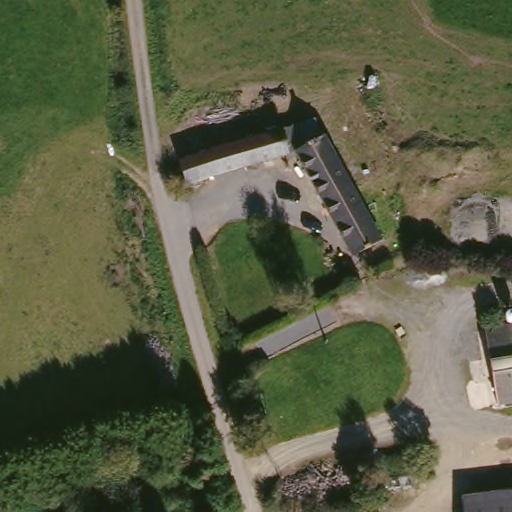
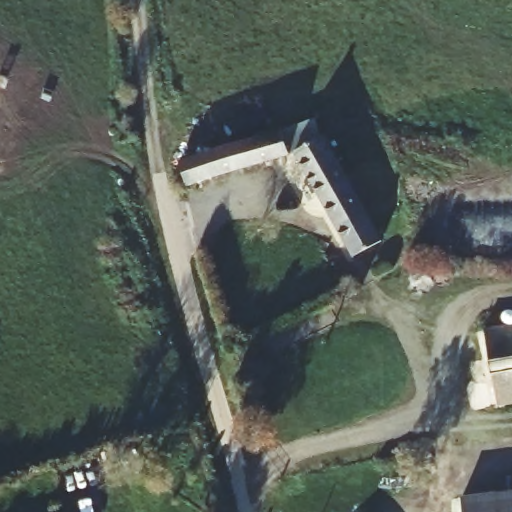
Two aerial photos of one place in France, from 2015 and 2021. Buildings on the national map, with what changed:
unchanged [(325,128),(292,149),(287,155),(280,130),(278,125),(318,115),(325,128)]
unchanged [(179,180),(172,154),(280,130),(285,154),(179,180)]
unchanged [(350,258),(292,153),(317,138),(365,223),(377,244),(350,258)]
unchanged [(490,332),(512,328),(512,403),(493,407),(488,374),(481,333),(490,332)]
unchanged [(464,512),(462,496),(512,490),(512,512),(464,512)]

